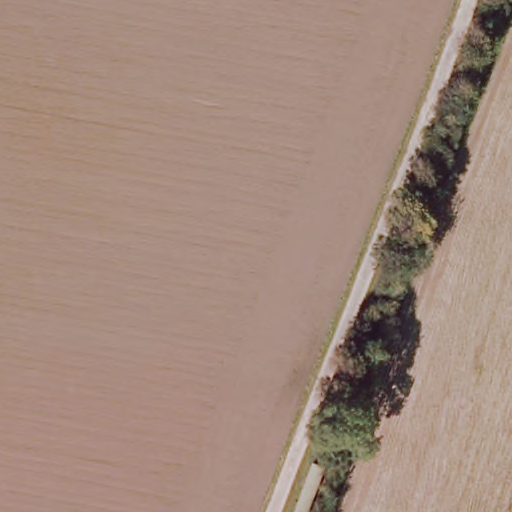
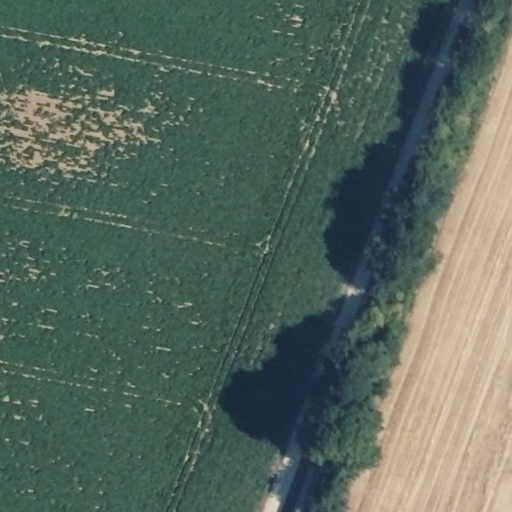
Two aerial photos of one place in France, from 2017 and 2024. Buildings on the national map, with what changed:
unchanged [(312,512),(292,512),(311,464),(328,470),(312,512)]

